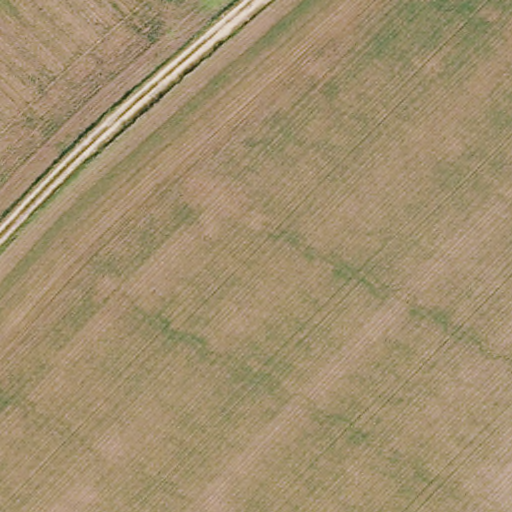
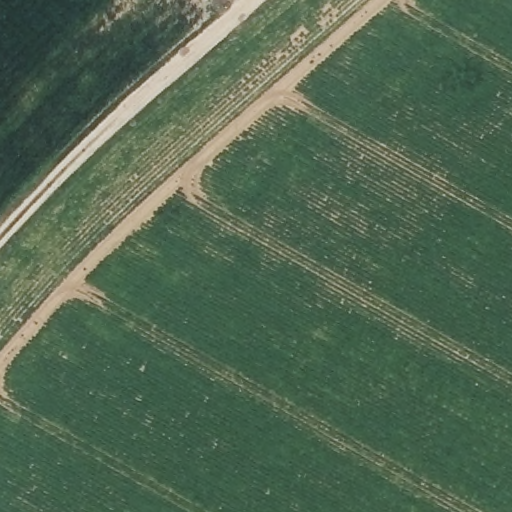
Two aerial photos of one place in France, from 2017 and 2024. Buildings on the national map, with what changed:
[]

